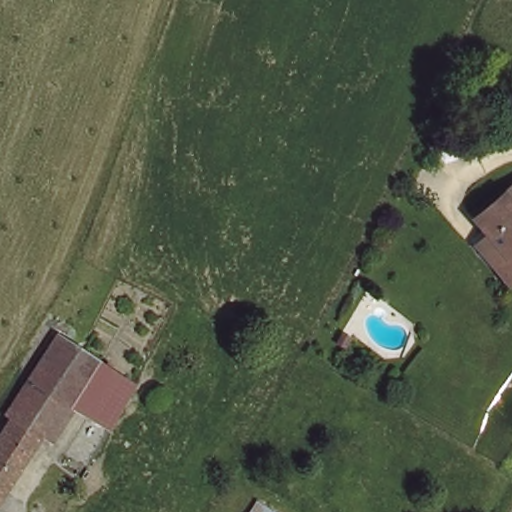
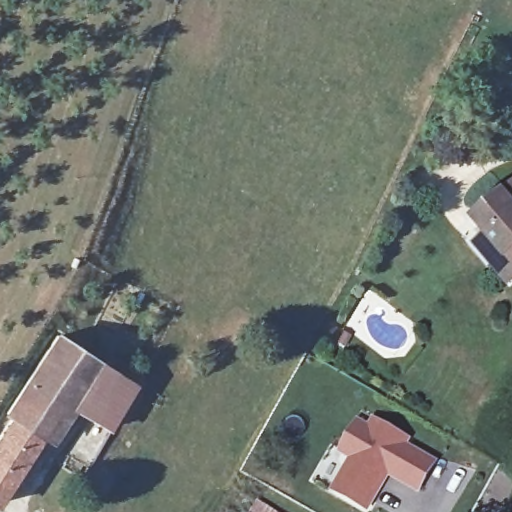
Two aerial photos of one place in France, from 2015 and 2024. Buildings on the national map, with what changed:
unchanged [(475,215),(512,185),(512,281),(509,283),(496,266),(477,242),(488,231),(475,215)]
unchanged [(55,331),(134,385),(111,422),(64,395),(75,378),(41,355),(55,331)]
unchanged [(75,378),(64,395),(0,492),(0,433),(14,412),(8,407),(41,355),(75,378)]
new [(389,476),(366,512),(365,512),(329,490),(347,459),(336,452),(356,418),(367,425),(371,416),(411,439),(408,445),(437,460),(418,491),(389,476)]
unchanged [(254,507),(262,512),(251,512),(254,507)]

